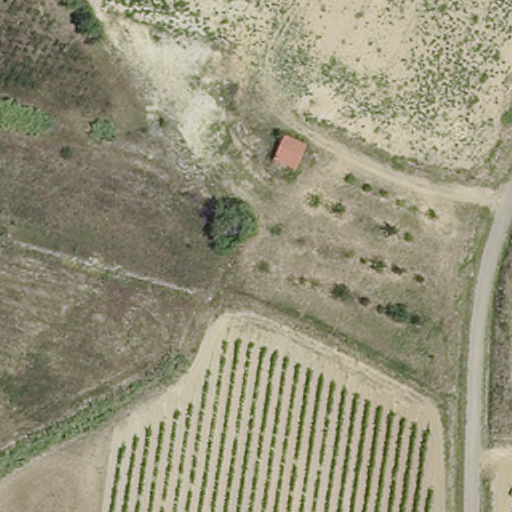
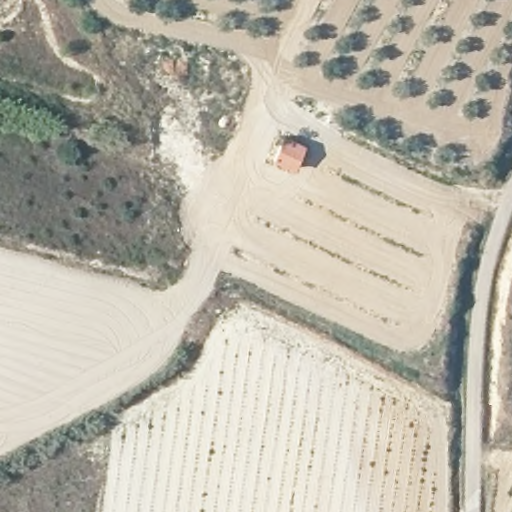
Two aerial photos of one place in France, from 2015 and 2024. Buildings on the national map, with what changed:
unchanged [(291,168),(270,157),(281,132),(302,143),(291,168)]

